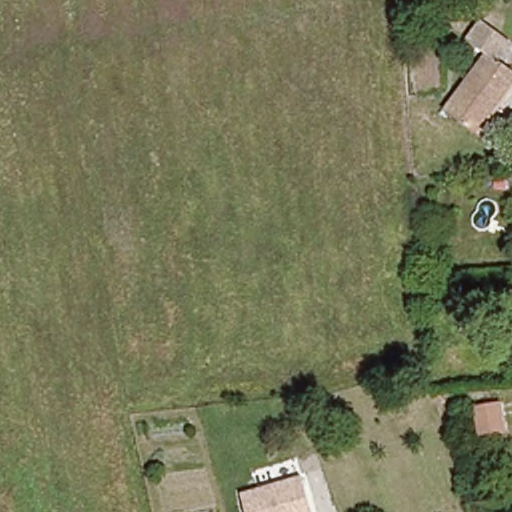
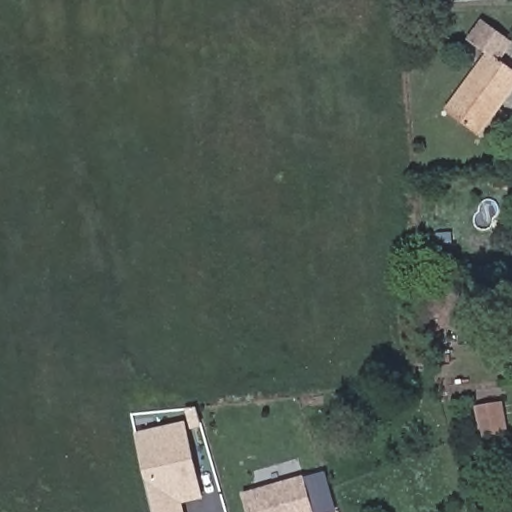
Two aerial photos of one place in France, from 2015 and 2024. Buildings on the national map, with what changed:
unchanged [(498,110),(502,113),(482,141),(447,116),(492,55),(512,70),(512,90),(498,110)]
new [(507,405),(511,435),(486,437),(482,408),(507,405)]
new [(185,504),(186,512),(154,512),(136,433),(186,422),(204,500),(185,504)]
unchanged [(244,494),(305,477),(314,512),(249,512),(244,494)]

